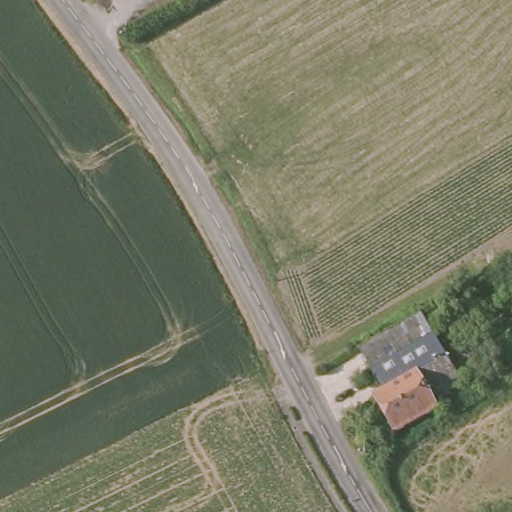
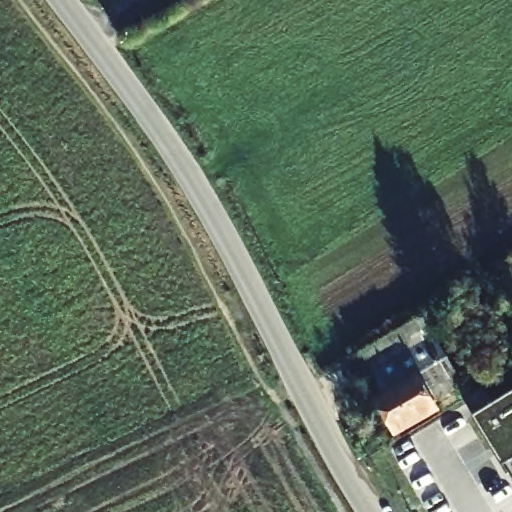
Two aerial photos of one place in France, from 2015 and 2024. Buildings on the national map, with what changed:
unchanged [(436,335),(433,336),(458,386),(432,400),(437,410),(396,433),(373,395),(382,389),(363,347),(427,315),(436,335)]
new [(500,465),(473,419),(512,393),(512,459),(500,465)]

